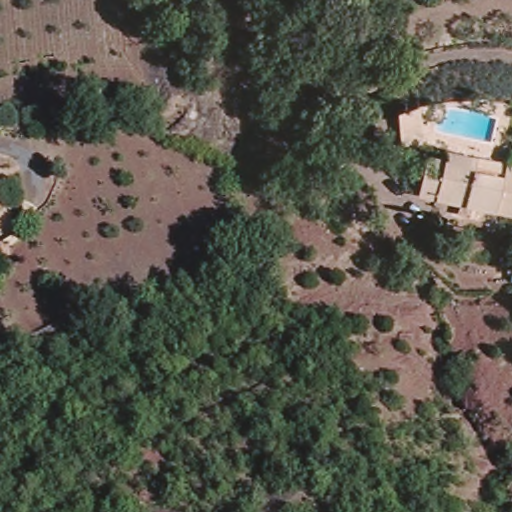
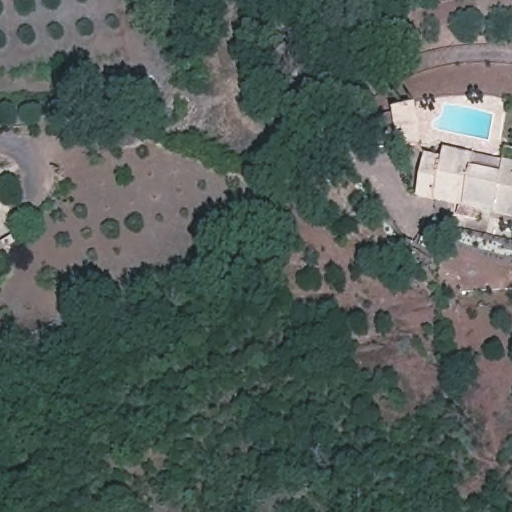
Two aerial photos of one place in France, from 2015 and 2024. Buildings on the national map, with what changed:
unchanged [(384,116),(383,112),(401,107),(413,141),(393,143),(368,151),(359,125),(384,116)]
unchanged [(420,157),(437,160),(440,151),(466,157),(499,164),(512,167),(512,219),(414,199),(420,157)]
unchanged [(5,266),(0,255),(0,253),(19,247),(24,260),(5,266)]

